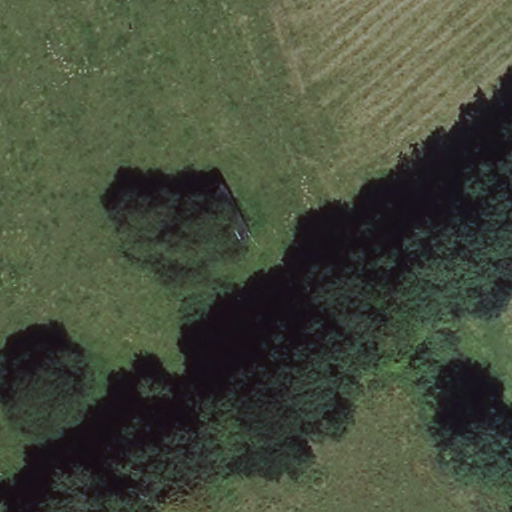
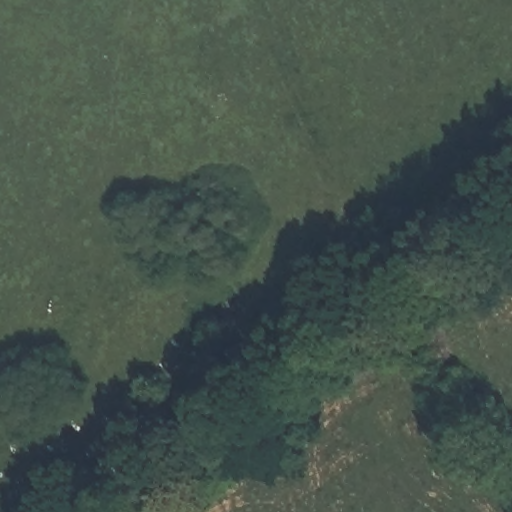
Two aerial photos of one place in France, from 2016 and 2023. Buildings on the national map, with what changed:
unchanged [(208,187),(234,238),(217,247),(191,196),(208,187)]

